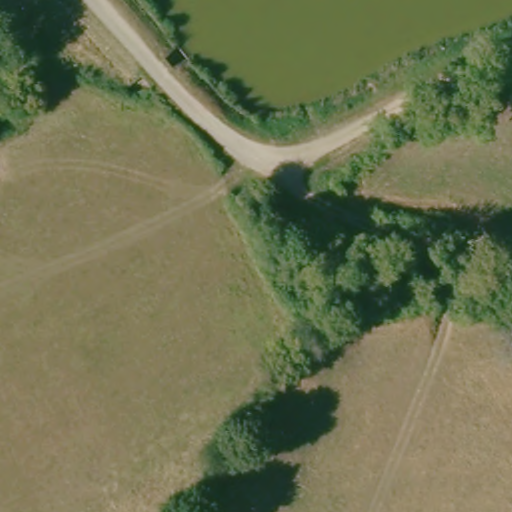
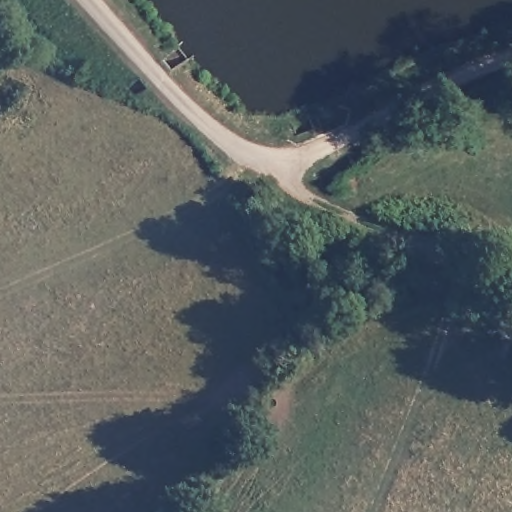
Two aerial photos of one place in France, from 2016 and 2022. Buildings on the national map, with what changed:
[]

